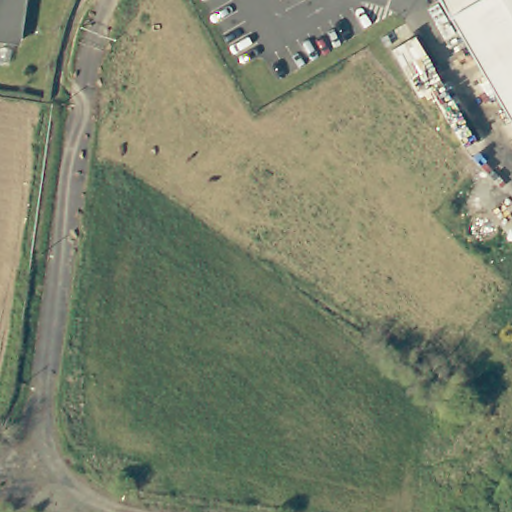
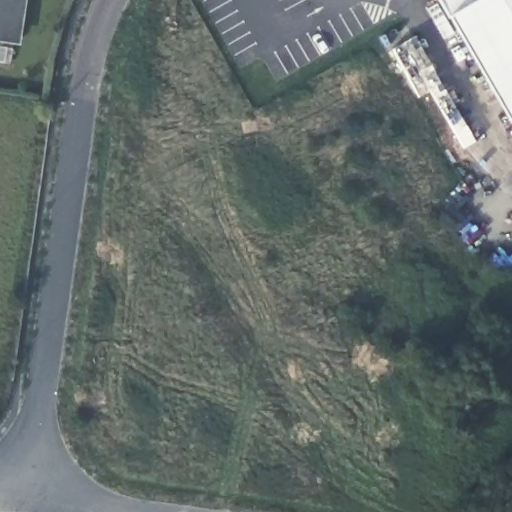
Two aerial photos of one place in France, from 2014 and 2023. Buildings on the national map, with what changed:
unchanged [(14,39),(0,38),(0,0),(20,0),(14,39)]
unchanged [(512,132),(436,0),(512,0),(512,132)]

